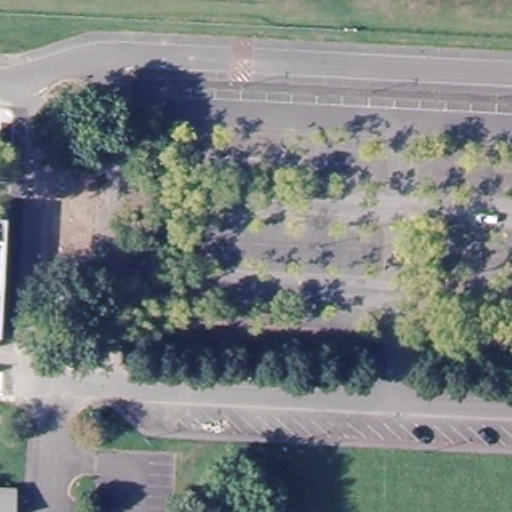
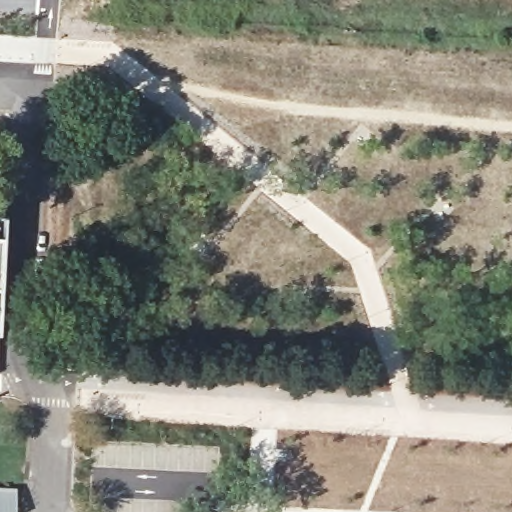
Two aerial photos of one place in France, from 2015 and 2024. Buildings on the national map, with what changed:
unchanged [(0,305),(0,215),(5,215),(0,305)]
unchanged [(17,512),(0,512),(0,487),(17,488),(17,512)]

